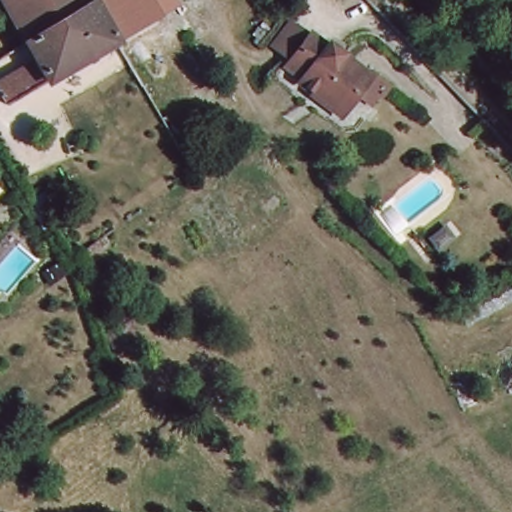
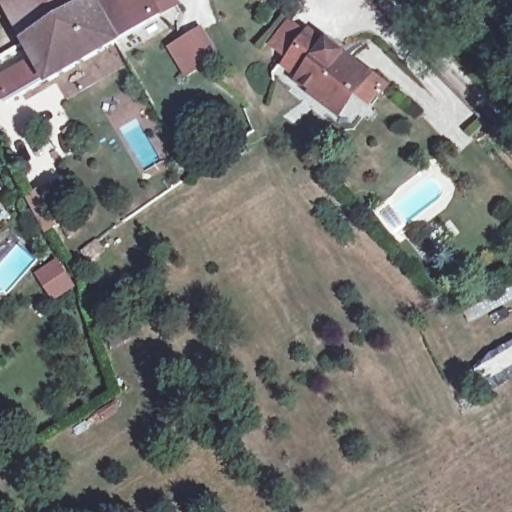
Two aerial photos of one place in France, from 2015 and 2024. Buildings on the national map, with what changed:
unchanged [(31,46),(5,0),(96,0),(98,5),(107,19),(141,0),(151,0),(161,19),(120,44),(121,46),(95,61),(79,71),(74,75),(54,86),(54,87),(53,84),(12,106),(1,89),(41,64),(35,54),(10,69),(6,61),(31,46)]
unchanged [(98,5),(107,0),(141,0),(107,19),(98,5)]
unchanged [(178,0),(182,6),(161,19),(151,0),(178,0)]
unchanged [(333,109),(314,95),(298,83),(299,79),(284,67),(289,60),(271,46),(288,25),(306,39),(309,35),(324,47),(329,41),(343,53),(339,58),(354,69),(366,79),(353,98),(340,115),(333,109)]
new [(202,26),(221,57),(187,79),(168,49),(202,26)]
unchanged [(44,231),(34,213),(28,203),(41,195),(47,205),(56,224),(44,231)]
unchanged [(111,330),(129,320),(136,334),(123,342),(118,344),(111,348),(104,334),(111,330)]

